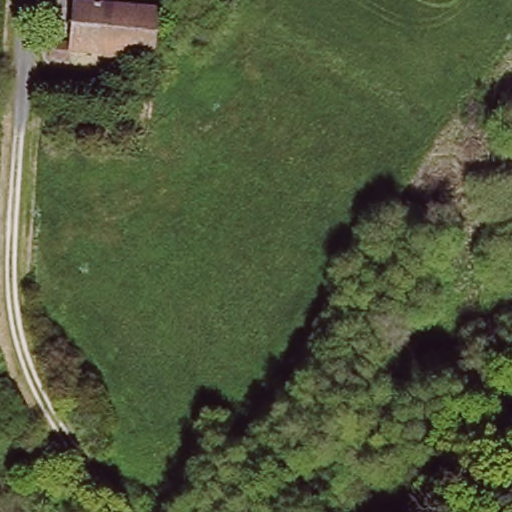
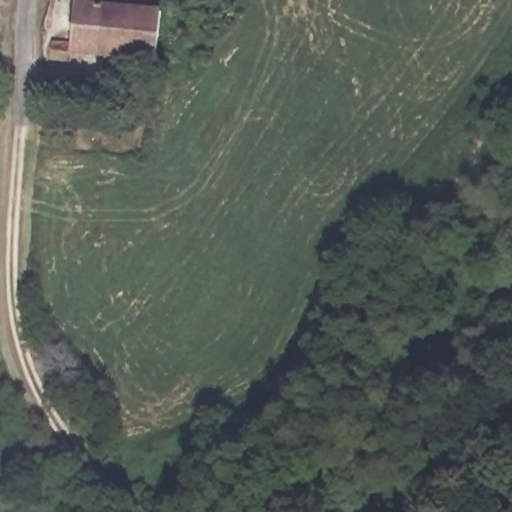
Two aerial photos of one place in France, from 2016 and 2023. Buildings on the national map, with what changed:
unchanged [(55,57),(57,42),(75,45),(80,7),(53,3),(54,0),(83,0),(83,1),(165,12),(159,60),(75,50),(73,60),(55,57)]

